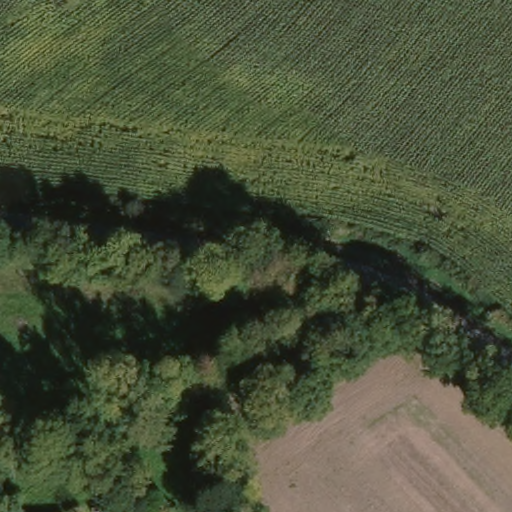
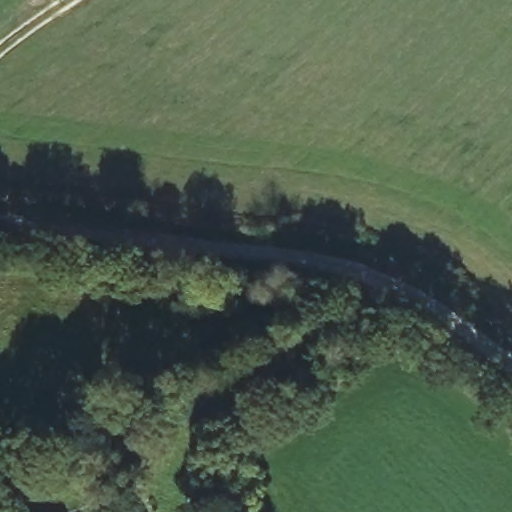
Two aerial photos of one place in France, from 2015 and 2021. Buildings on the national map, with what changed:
unchanged [(108,502),(117,499),(121,508),(126,507),(128,512),(106,512),(103,504),(108,502)]

